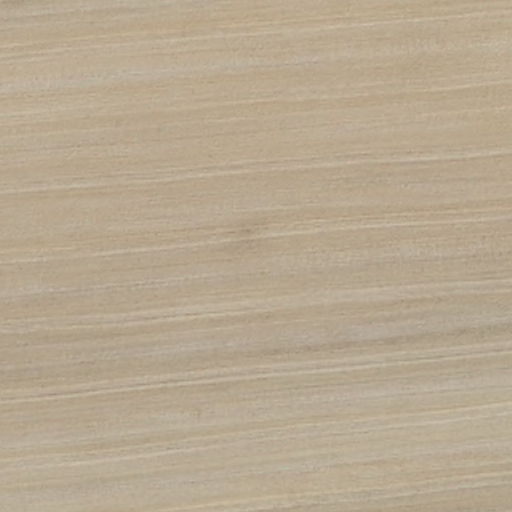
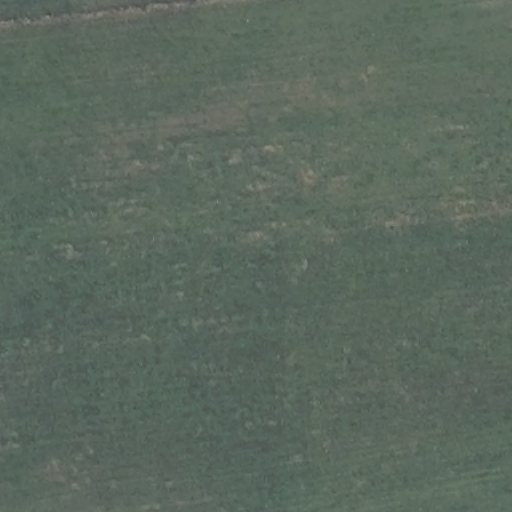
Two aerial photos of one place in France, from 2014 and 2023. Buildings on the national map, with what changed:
[]

